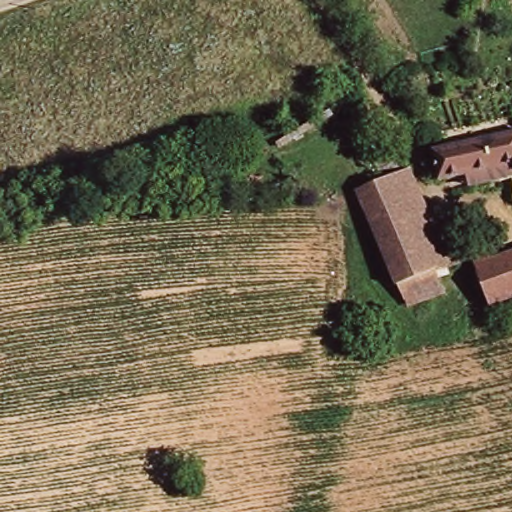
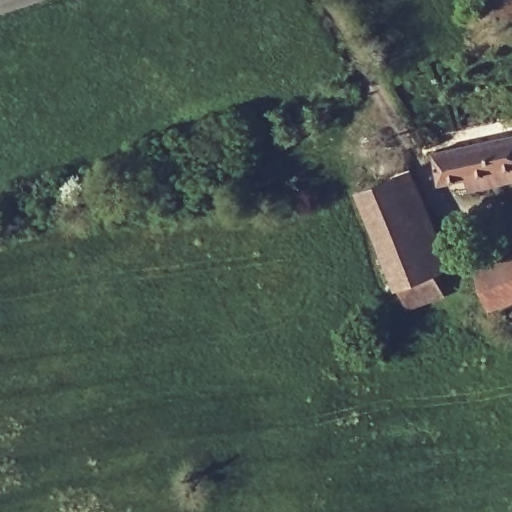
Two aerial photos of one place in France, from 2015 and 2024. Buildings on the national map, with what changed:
unchanged [(512,133),(512,194),(507,180),(451,194),(447,179),(437,181),(430,151),(512,133)]
unchanged [(353,189),(374,181),(370,169),(392,159),(400,178),(395,181),(440,294),(400,309),(353,189)]
unchanged [(500,260),(512,256),(512,296),(495,302),(479,259),(497,252),(500,260)]

